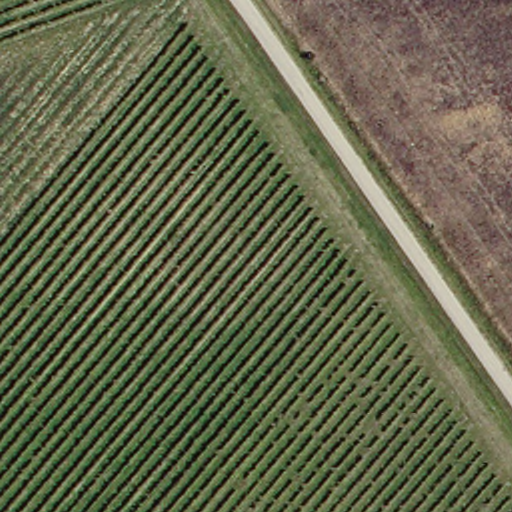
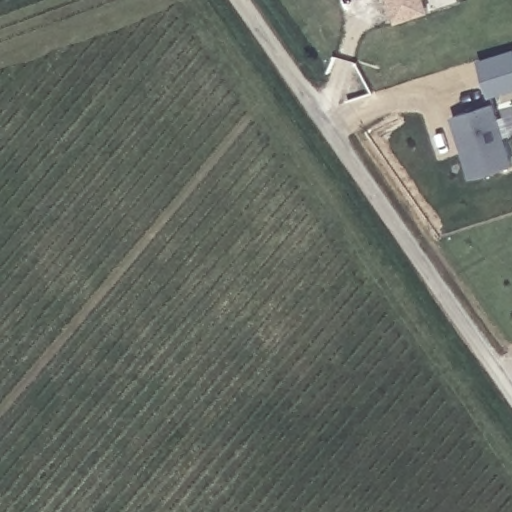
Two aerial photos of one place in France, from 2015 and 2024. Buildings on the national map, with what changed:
new [(424,12),(392,21),(386,0),(421,0),(424,12)]
new [(486,96),(482,81),(477,62),(510,52),(512,58),(512,88),(486,96)]
new [(495,104),(512,162),(512,164),(471,178),(451,116),(495,104)]

